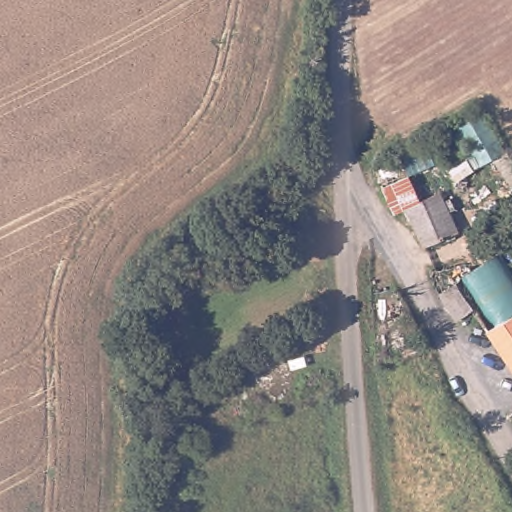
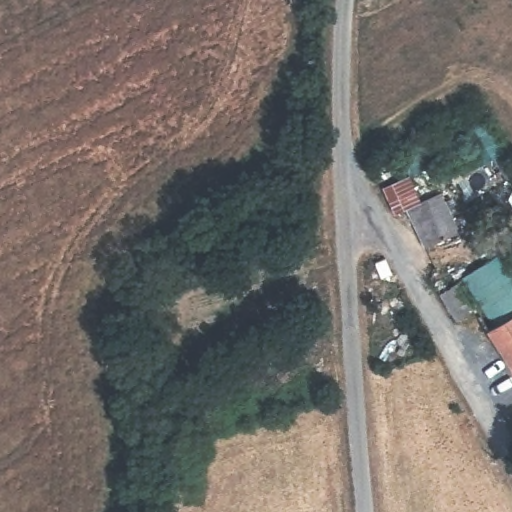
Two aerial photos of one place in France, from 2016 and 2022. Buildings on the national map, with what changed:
unchanged [(443,185),(466,223),(434,242),(409,204),(401,209),(387,183),(411,168),(426,195),(443,185)]
unchanged [(487,327),(512,312),(512,363),(487,327)]

